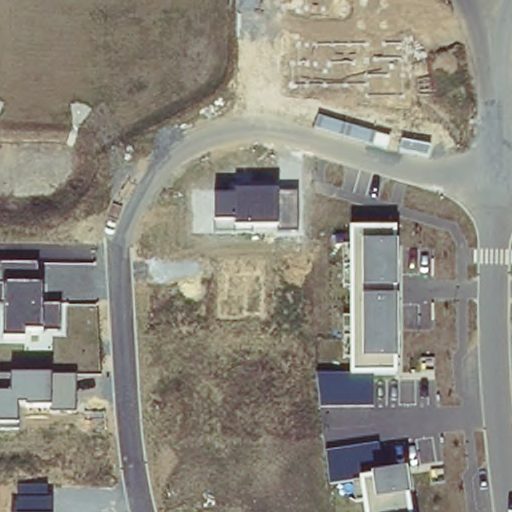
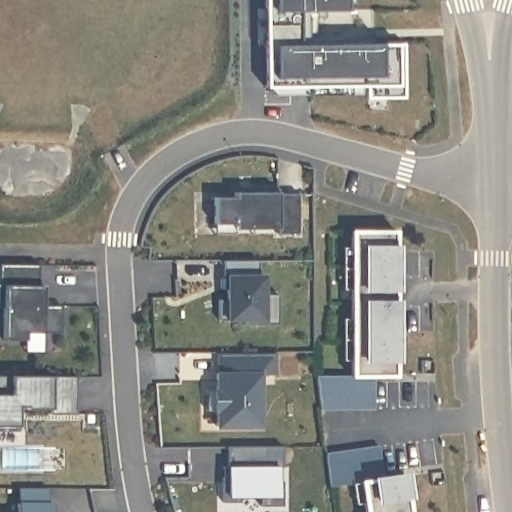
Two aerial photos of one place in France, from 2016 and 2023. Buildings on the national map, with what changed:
new [(321,10),(320,16),(310,16),(310,37),(369,36),(369,42),(398,42),(400,96),(361,97),(361,85),(261,85),(260,0),(342,0),(342,10),(321,10)]
unchanged [(280,235),(279,228),(232,227),(232,220),(213,221),(214,199),(235,199),(235,191),(281,193),(298,194),(300,231),(280,235)]
unchanged [(397,378),(375,379),(375,407),(321,406),(320,376),(350,375),(349,231),(396,230),(397,378)]
new [(238,321),(239,316),(214,315),(214,295),(223,295),(224,285),(219,285),(219,256),(255,257),(255,271),(260,271),(260,292),(273,292),(272,321),(238,321)]
unchanged [(45,335),(45,329),(26,330),(26,340),(2,340),(1,263),(41,264),(44,304),(60,305),(62,332),(45,335)]
new [(270,374),(255,375),(255,425),(214,425),(215,410),(203,410),(203,388),(214,388),(214,373),(216,373),(216,352),(270,351),(270,374)]
unchanged [(50,405),(20,405),(18,425),(0,425),(0,376),(10,375),(51,376),(76,376),(77,411),(51,414),(50,405)]
unchanged [(386,471),(406,470),(412,512),(364,512),(360,484),(330,487),(326,448),(377,442),(386,471)]
new [(220,466),(225,465),(225,445),(280,445),(280,466),(275,467),(275,481),(280,480),(279,505),(258,505),(258,494),(237,493),(237,502),(220,501),(220,466)]
unchanged [(19,485),(51,485),(53,512),(19,512),(19,485)]

